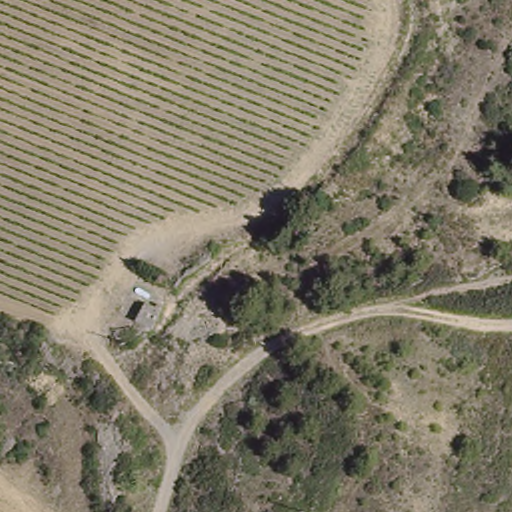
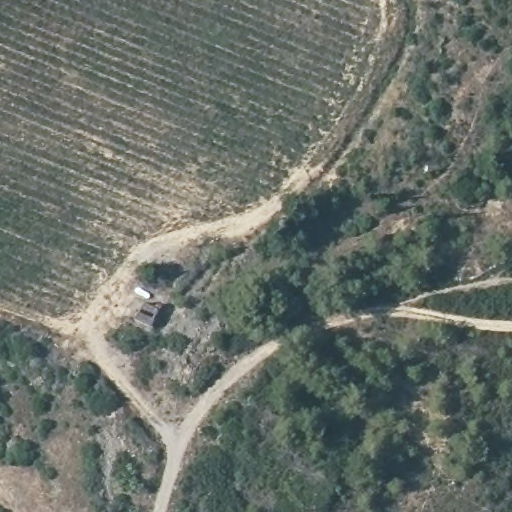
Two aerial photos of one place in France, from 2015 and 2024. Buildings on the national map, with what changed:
unchanged [(157,286),(151,300),(162,307),(152,329),(121,315),(138,275),(157,286)]

